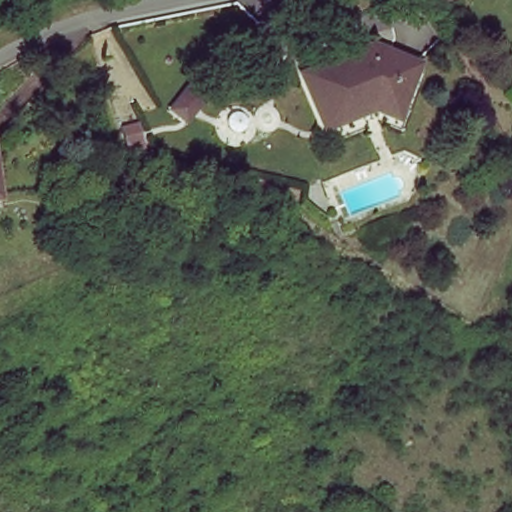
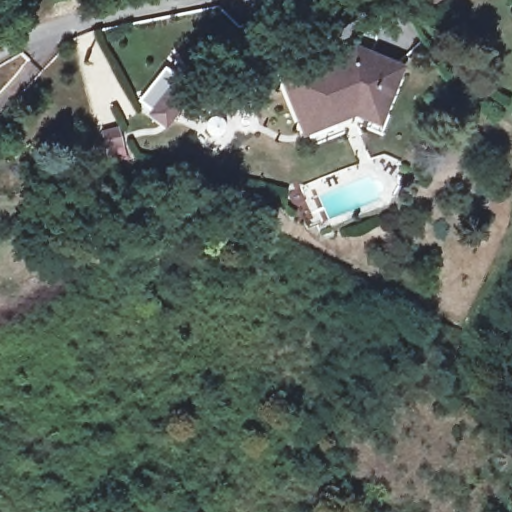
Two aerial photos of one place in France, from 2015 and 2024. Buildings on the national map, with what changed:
unchanged [(308,133),(286,84),(348,61),(346,54),(358,50),(400,70),(383,111),(356,101),(331,110),(335,122),(308,133)]

